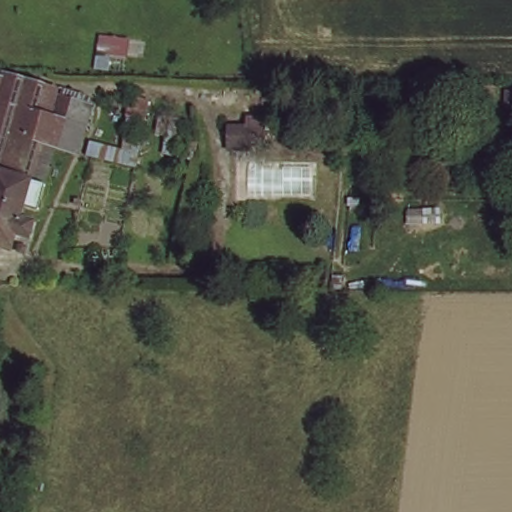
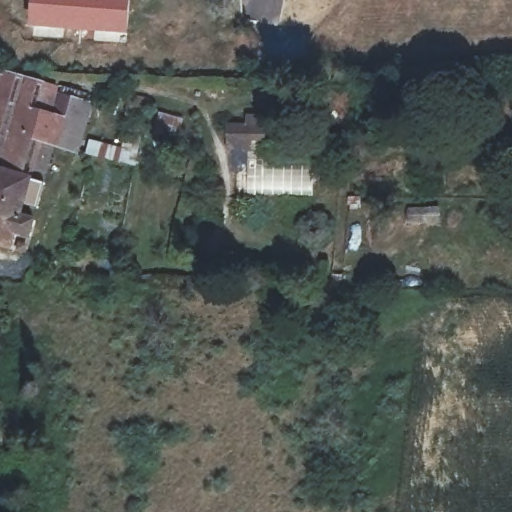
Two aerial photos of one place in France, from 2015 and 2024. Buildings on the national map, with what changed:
new [(33,22),(35,0),(129,0),(126,32),(33,22)]
unchanged [(40,205),(25,200),(21,210),(33,214),(28,232),(15,229),(10,245),(0,242),(0,71),(93,99),(80,151),(43,141),(34,171),(50,176),(40,205)]
unchanged [(251,144),(231,144),(233,127),(251,128),(251,144)]
unchanged [(116,158),(87,148),(90,139),(119,148),(116,158)]

